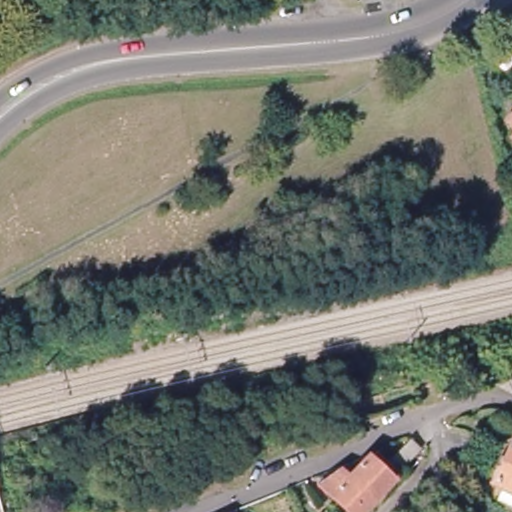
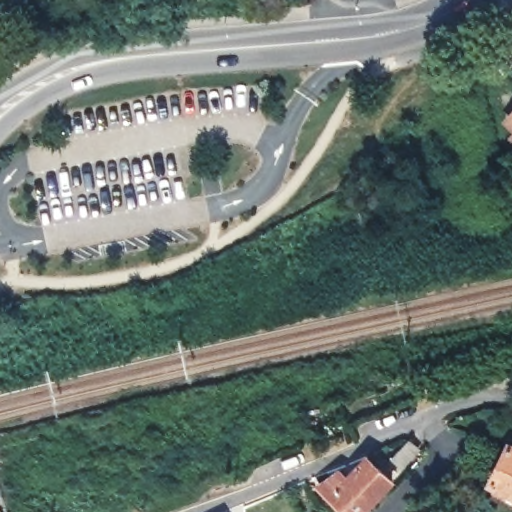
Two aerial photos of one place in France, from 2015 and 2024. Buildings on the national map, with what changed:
unchanged [(509,122),(512,119),(512,125),(509,122)]
unchanged [(419,448),(397,473),(388,463),(408,438),(419,448)]
unchanged [(510,445),(512,445),(512,491),(493,482),(510,445)]
unchanged [(392,479),(363,512),(342,512),(313,488),(338,473),(347,480),(365,457),(392,479)]

